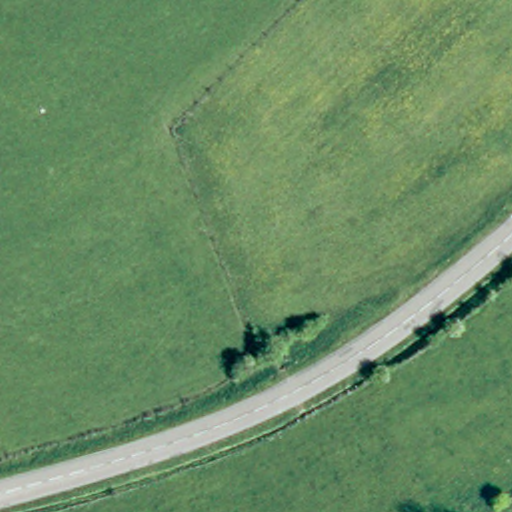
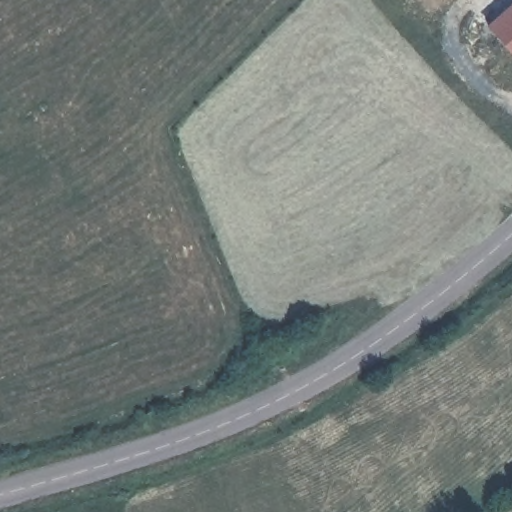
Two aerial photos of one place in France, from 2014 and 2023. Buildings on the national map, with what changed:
new [(482,25),(511,0),(512,0),(512,57),(482,25)]

